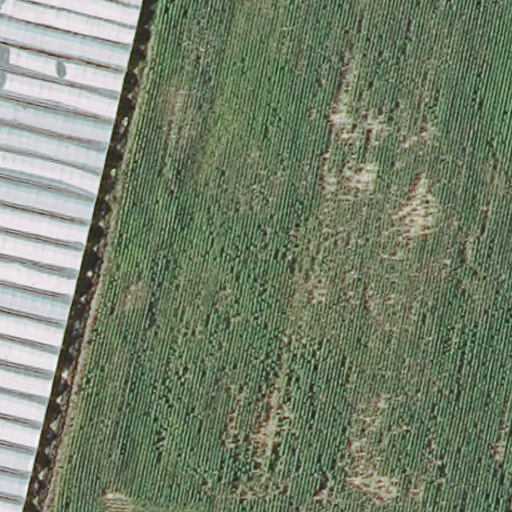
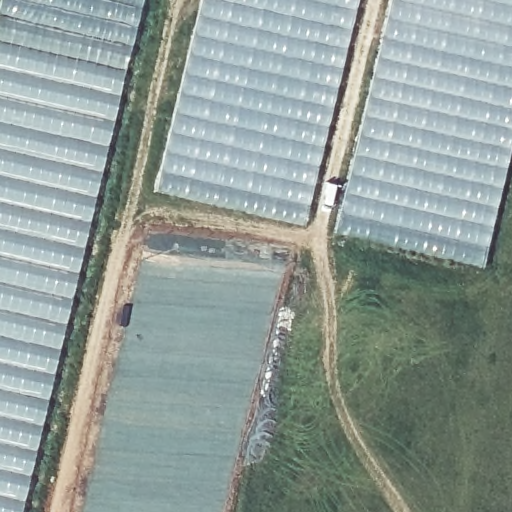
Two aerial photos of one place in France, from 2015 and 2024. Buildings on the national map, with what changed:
unchanged [(1,0),(149,0),(28,512),(0,512),(0,2),(1,0)]
new [(202,0),(359,0),(316,179),(305,227),(156,191),(202,0)]
new [(391,0),(512,0),(512,143),(482,267),(335,233),(348,185),(391,0)]

